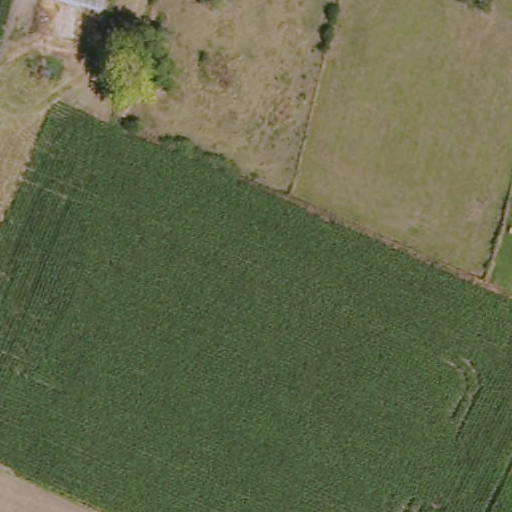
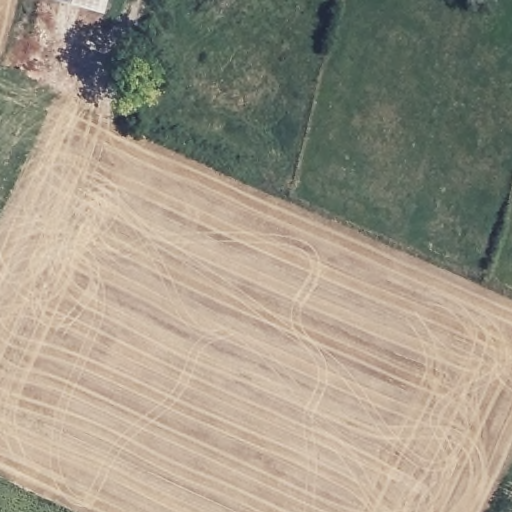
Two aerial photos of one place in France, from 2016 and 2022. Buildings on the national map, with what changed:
unchanged [(54,0),(103,0),(100,13),(54,0)]

